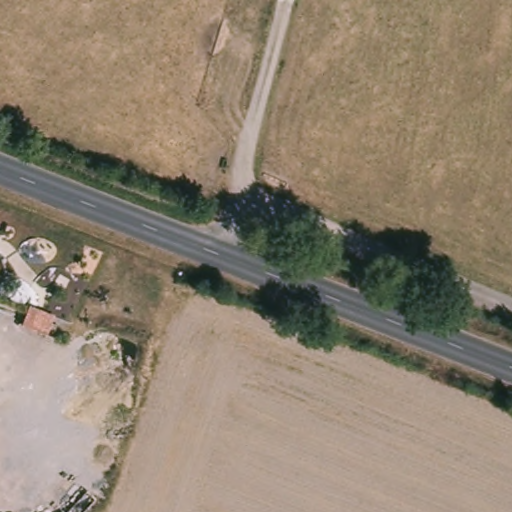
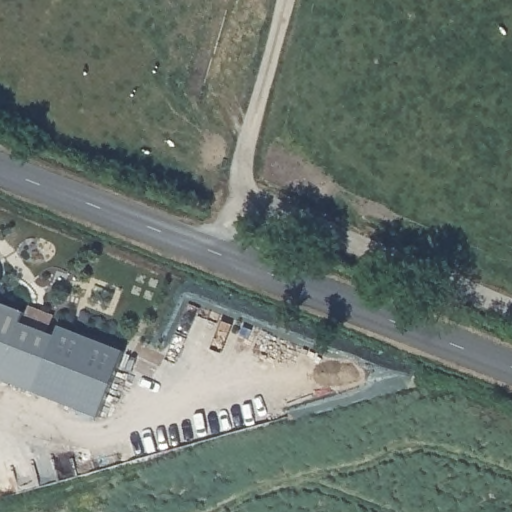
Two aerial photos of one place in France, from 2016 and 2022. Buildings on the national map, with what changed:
new [(29,305),(63,317),(60,325),(125,350),(100,416),(0,377),(0,301),(25,311),(29,305)]

